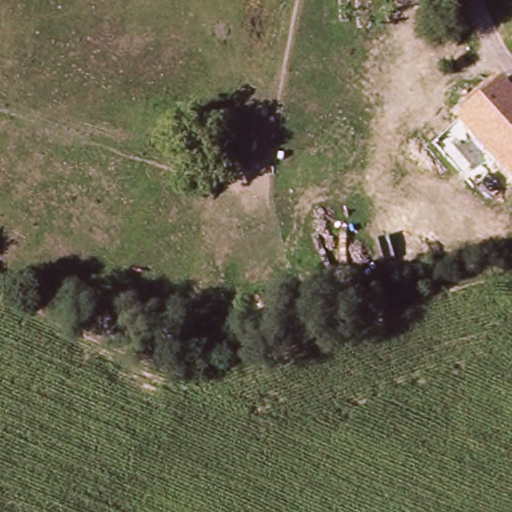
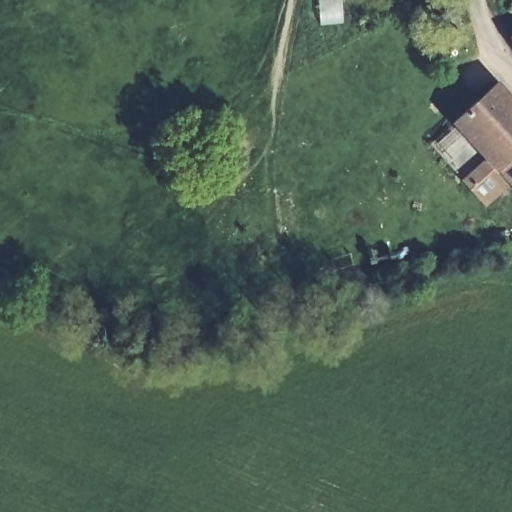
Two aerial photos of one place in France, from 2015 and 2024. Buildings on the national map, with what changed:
unchanged [(512,38),(512,45),(508,40),(512,38)]
unchanged [(452,124),(490,88),(512,115),(512,116),(512,158),(495,175),(462,136),(452,124)]
unchanged [(512,158),(512,193),(495,175),(512,158)]

